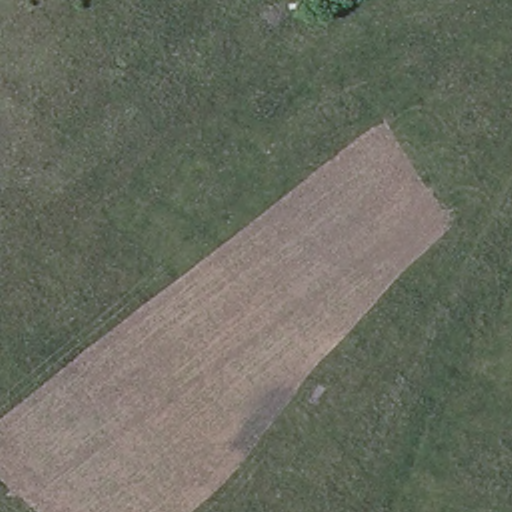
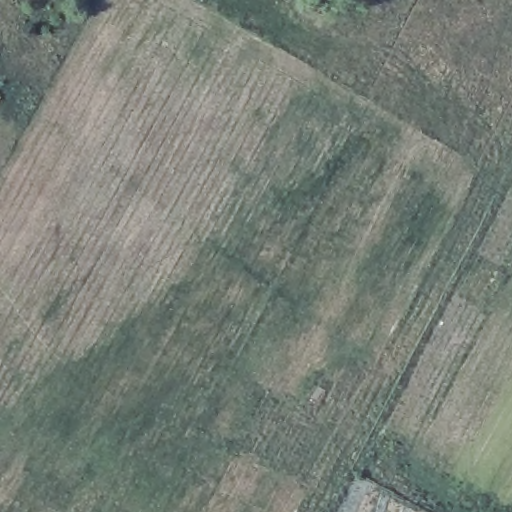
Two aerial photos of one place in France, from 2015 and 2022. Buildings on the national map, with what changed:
[]

